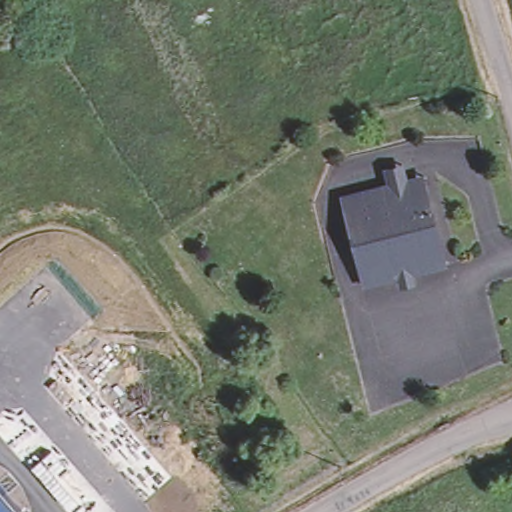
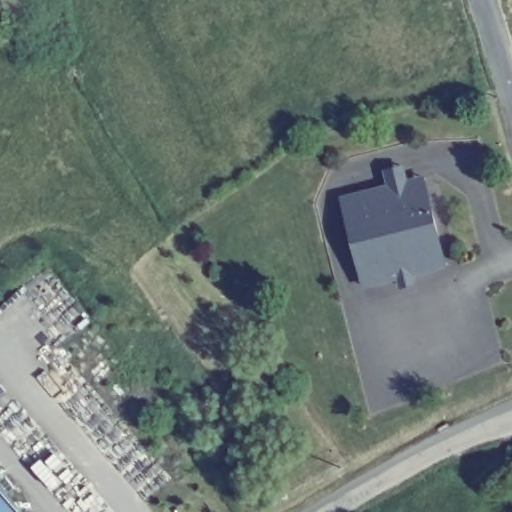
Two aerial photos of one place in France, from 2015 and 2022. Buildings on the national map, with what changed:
unchanged [(380,297),(376,281),(370,283),(358,286),(352,261),(341,217),(336,198),(345,196),(380,187),(377,177),(390,174),(391,184),(410,180),(418,177),(423,197),(435,241),(440,265),(429,268),(395,277),(400,292),(380,297)]
unchanged [(0,512),(0,496),(15,512),(0,512)]

